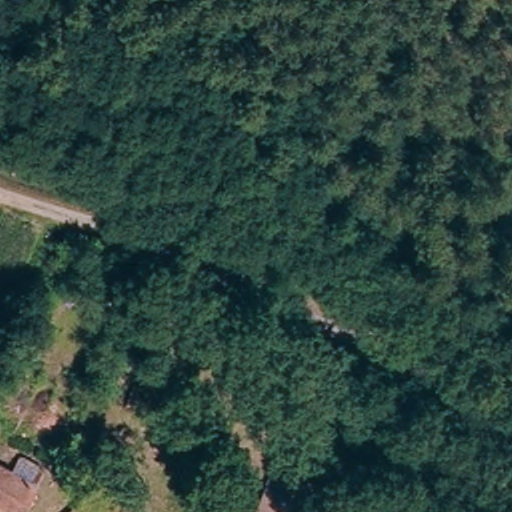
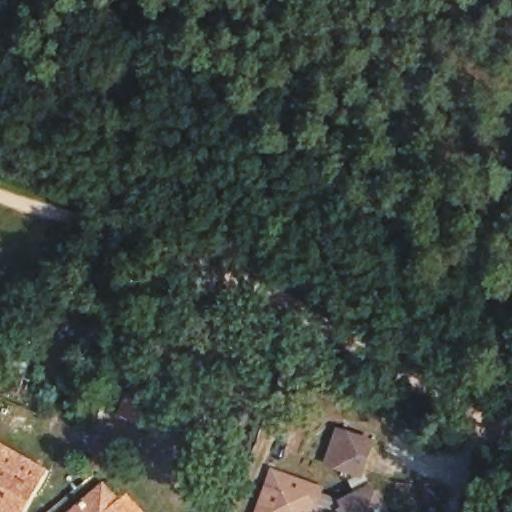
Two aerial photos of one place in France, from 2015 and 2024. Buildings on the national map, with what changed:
unchanged [(191,363),(150,348),(160,322),(200,337),(191,363)]
new [(324,493),(339,501),(355,493),(348,475),(324,465),(336,429),(341,429),(375,442),(367,469),(378,492),(382,489),(392,509),(386,511),(387,512),(337,512),(337,511),(319,506),(324,493)]
unchanged [(48,489),(33,512),(13,512),(0,505),(0,455),(48,489)]
new [(272,466),(326,485),(317,512),(257,512),(272,466)]
demolished [(344,501),(339,512),(300,512),(274,501),(284,474),(344,501)]
unchanged [(109,488),(127,512),(77,512),(109,488)]

